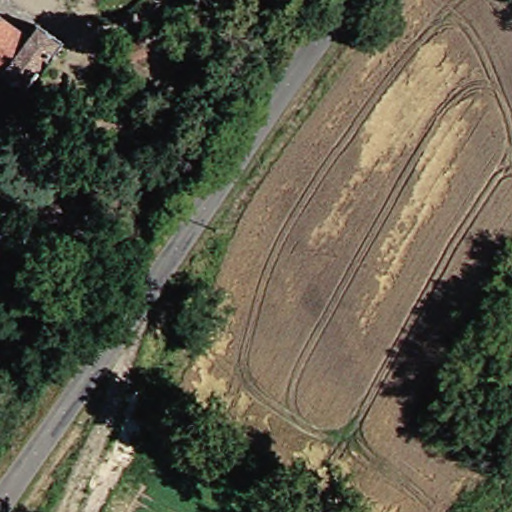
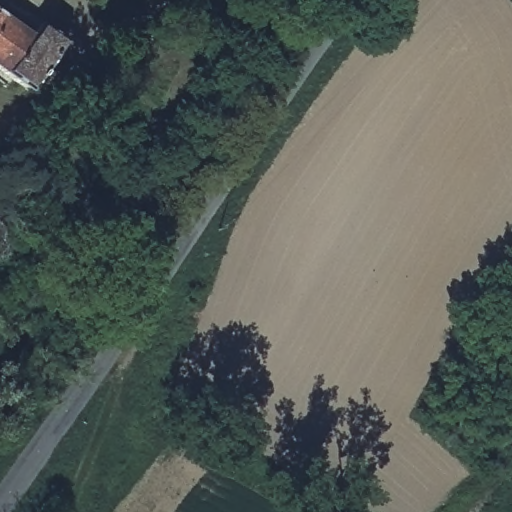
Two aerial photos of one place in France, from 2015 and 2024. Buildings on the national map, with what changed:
unchanged [(0,6),(40,36),(50,24),(69,38),(35,84),(0,58),(0,6)]
unchanged [(139,43),(144,55),(125,65),(119,53),(139,43)]

